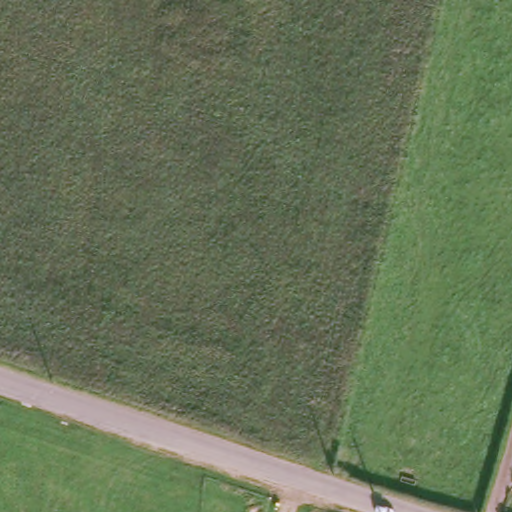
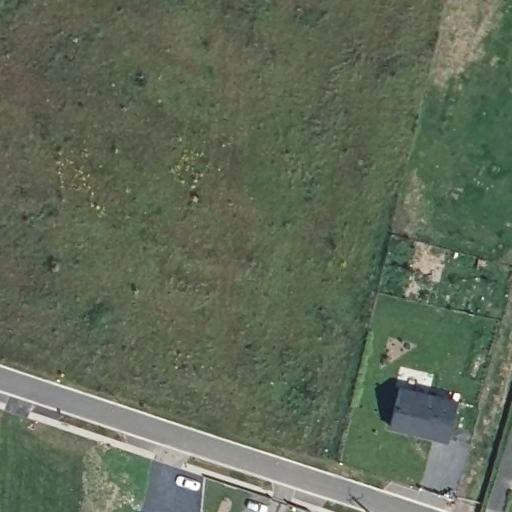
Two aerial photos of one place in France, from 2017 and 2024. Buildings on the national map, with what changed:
new [(400,383),(458,399),(448,436),(390,422),(400,383)]

